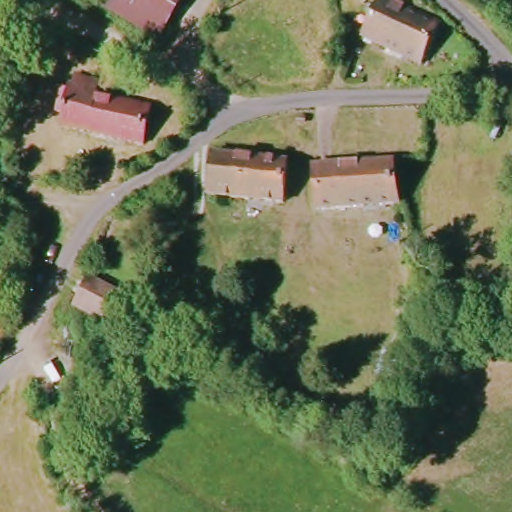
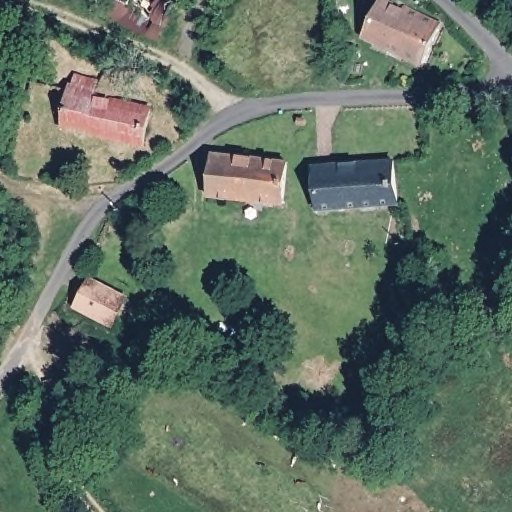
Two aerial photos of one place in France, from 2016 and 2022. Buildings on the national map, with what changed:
unchanged [(160,43),(95,4),(97,0),(186,0),(160,43)]
unchanged [(419,68),(359,40),(377,2),(400,13),(402,10),(436,28),(419,68)]
unchanged [(141,145),(59,126),(67,86),(149,108),(141,145)]
unchanged [(206,200),(209,157),(285,164),(281,207),(206,200)]
unchanged [(315,212),(310,169),(389,163),(395,207),(315,212)]
unchanged [(113,327),(78,309),(92,282),(128,299),(113,327)]
unchanged [(404,322),(403,315),(422,310),(423,320),(404,322)]
unchanged [(172,347),(165,359),(139,345),(145,333),(172,347)]

